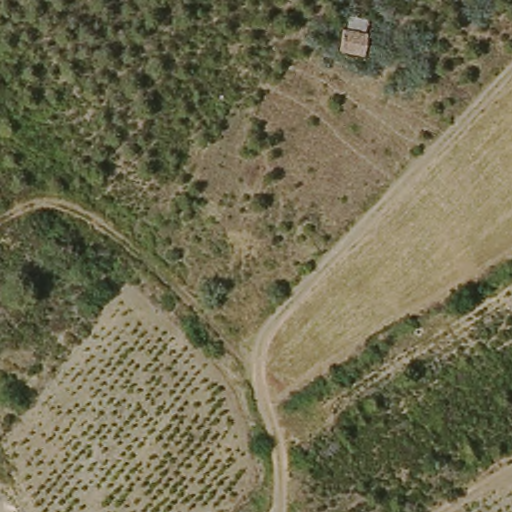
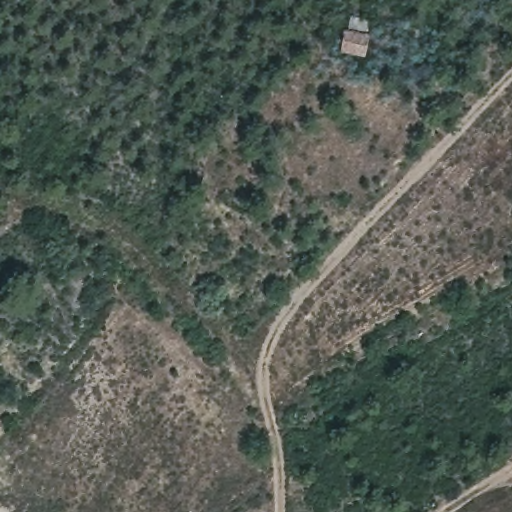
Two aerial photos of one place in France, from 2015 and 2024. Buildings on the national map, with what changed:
unchanged [(344,20),(368,26),(364,42),(339,36),(344,20)]

